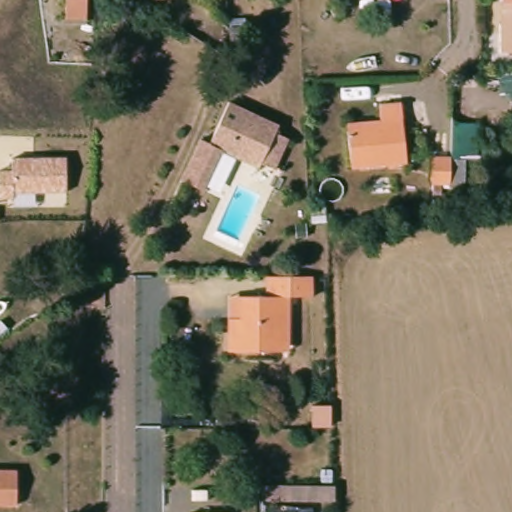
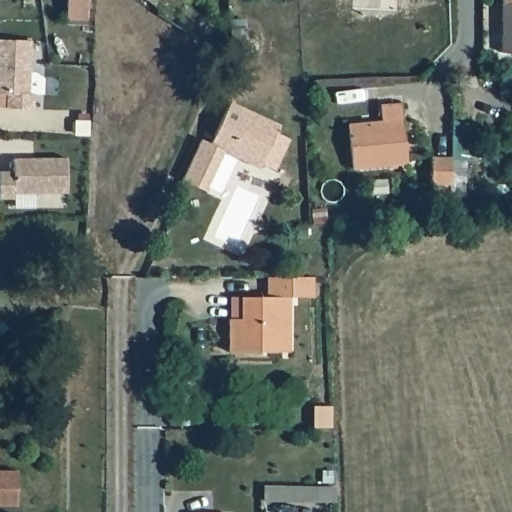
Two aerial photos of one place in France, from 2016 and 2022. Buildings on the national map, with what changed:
unchanged [(92,16),(69,15),(70,0),(92,0),(92,16)]
unchanged [(501,42),(499,0),(512,0),(512,42),(501,42)]
unchanged [(245,29),(245,59),(229,60),(228,29),(245,29)]
new [(20,93),(25,93),(26,108),(1,109),(0,95),(0,41),(19,40),(20,93)]
unchanged [(223,158),(206,191),(202,189),(179,178),(200,138),(209,142),(230,100),(279,124),(275,133),(290,139),(275,170),(260,163),(255,174),(223,158)]
unchanged [(349,168),(344,122),(377,121),(377,106),(398,106),(399,120),(404,165),(349,168)]
unchanged [(12,159),(66,159),(66,191),(15,191),(15,199),(0,198),(0,171),(12,171),(12,159)]
unchanged [(452,167),(452,181),(452,193),(433,192),(433,167),(452,167)]
unchanged [(274,349),(226,350),(227,319),(227,294),(240,293),(255,293),(255,273),(268,273),(304,272),(305,294),(287,294),(287,333),(287,349),(274,349)]
unchanged [(15,503),(0,503),(0,468),(14,469),(15,503)]

